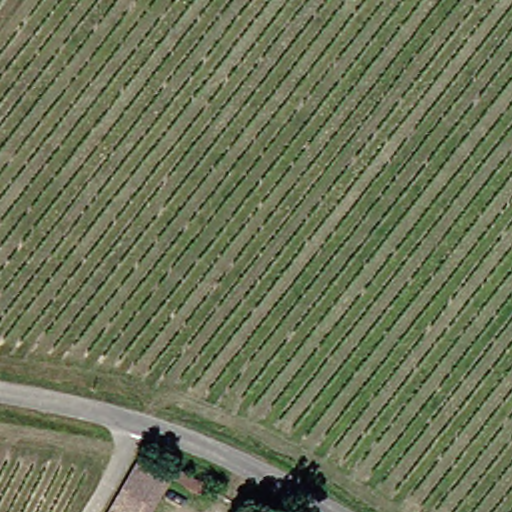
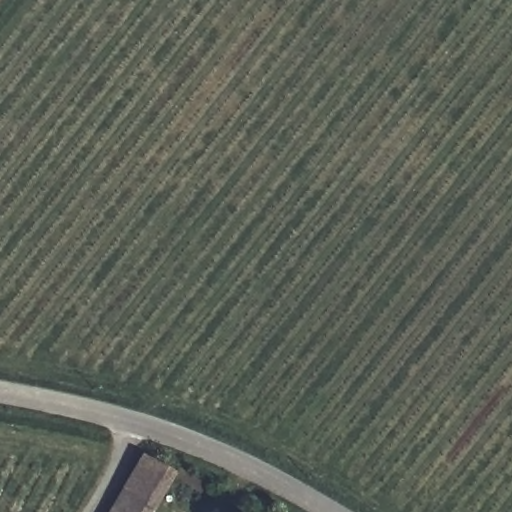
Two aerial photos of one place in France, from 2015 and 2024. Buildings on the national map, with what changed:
unchanged [(148,451),(178,468),(153,512),(134,512),(117,502),(148,451)]
unchanged [(134,512),(111,512),(117,502),(134,512)]

